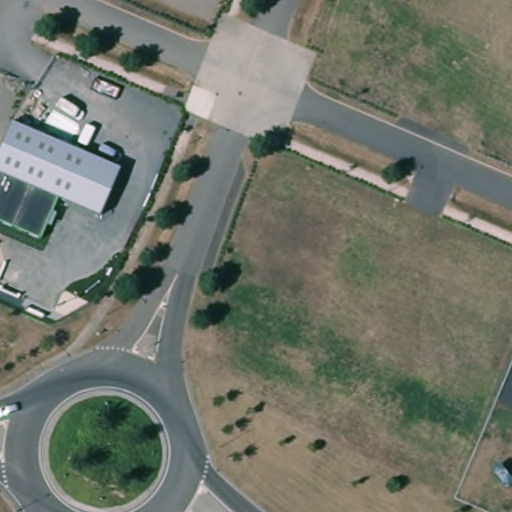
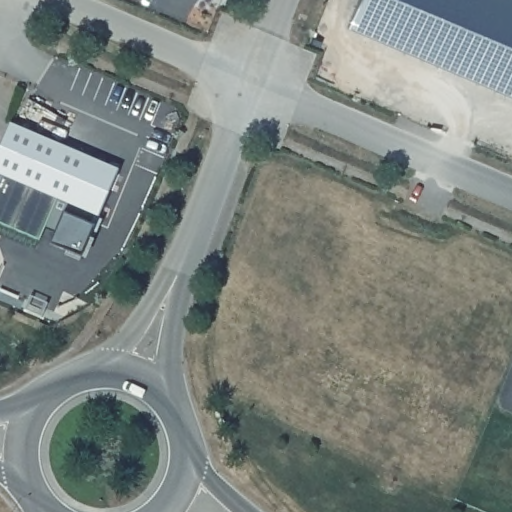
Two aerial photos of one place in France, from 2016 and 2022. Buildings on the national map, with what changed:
new [(512,0),(512,96),(346,26),(357,0),(512,0)]
unchanged [(117,168),(97,216),(57,199),(41,238),(0,222),(0,148),(11,123),(117,168)]

